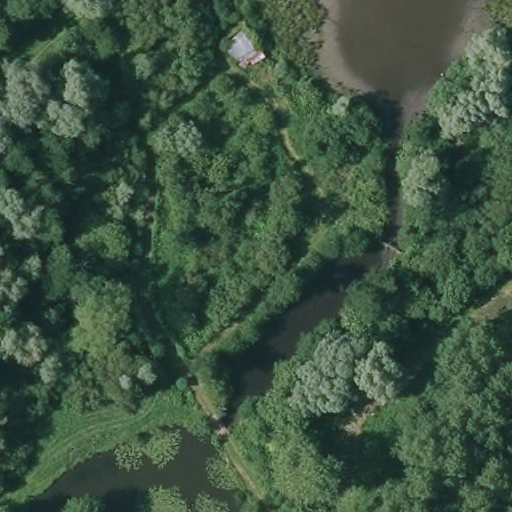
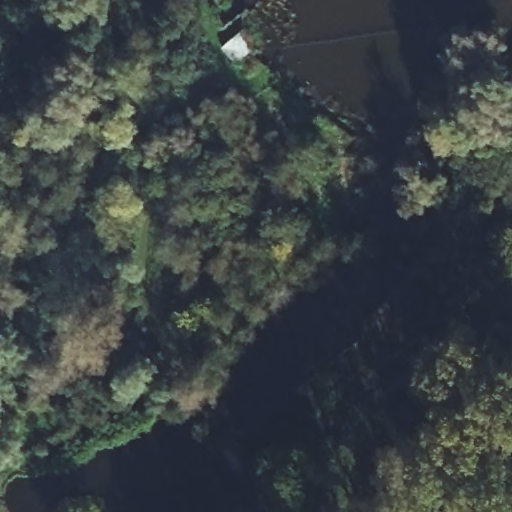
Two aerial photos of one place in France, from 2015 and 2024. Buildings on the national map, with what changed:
unchanged [(214,47),(245,29),(262,61),(239,73),(214,47)]

